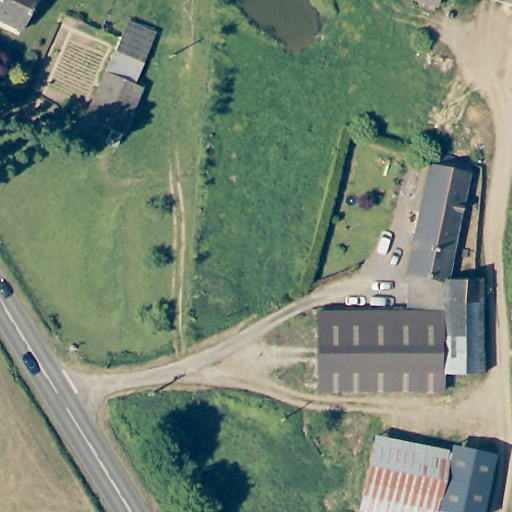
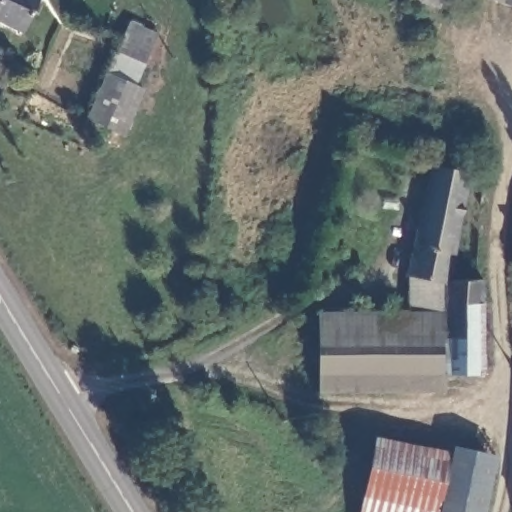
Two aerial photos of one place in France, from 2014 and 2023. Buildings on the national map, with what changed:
unchanged [(0,21),(0,0),(37,0),(22,31),(0,21)]
unchanged [(418,0),(440,0),(438,7),(418,0)]
unchanged [(512,0),(512,5),(496,0),(512,0)]
unchanged [(125,134),(89,119),(107,72),(116,51),(146,65),(137,85),(145,88),(125,134)]
unchanged [(431,166),(437,168),(440,155),(473,163),(448,280),(483,280),(483,375),(443,374),(443,312),(409,312),(408,274),(431,166)]
unchanged [(409,312),(443,312),(443,374),(443,391),(319,392),(318,312),(409,312)]
unchanged [(439,512),(361,512),(376,437),(452,453),(440,511),(439,512)]
unchanged [(495,462),(484,512),(445,512),(440,511),(452,453),(495,462)]

